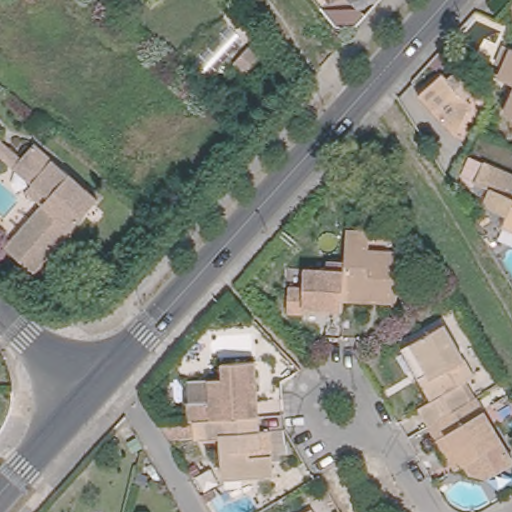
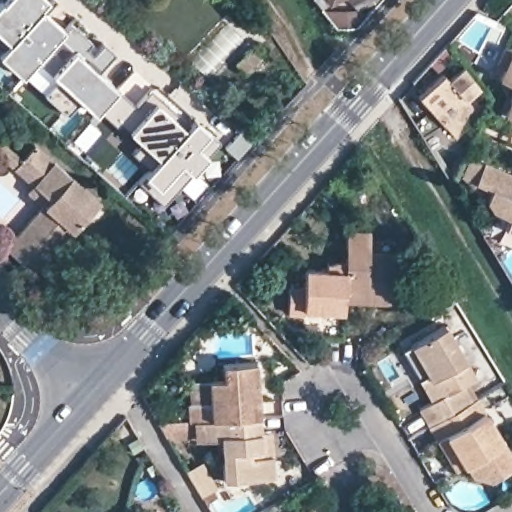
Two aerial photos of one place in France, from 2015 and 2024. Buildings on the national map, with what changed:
new [(2,1),(3,0),(46,0),(41,6),(62,26),(70,19),(92,39),(87,44),(93,50),(103,40),(113,49),(95,65),(116,86),(137,104),(152,87),(187,120),(179,125),(183,128),(158,155),(155,151),(149,165),(132,146),(138,135),(133,129),(124,121),(118,126),(99,107),(95,111),(75,94),(65,111),(40,90),(52,70),(40,58),(23,75),(0,54),(0,52),(10,41),(0,32),(0,0),(2,1)]
unchanged [(504,65),(497,62),(505,46),(512,49),(512,82),(500,76),(504,65)]
unchanged [(445,120),(418,91),(443,69),(448,75),(464,60),(479,80),(465,92),(470,99),(461,120),(455,132),(452,127),(445,120)]
unchanged [(512,96),(512,115),(506,112),(512,96)]
new [(184,129),(193,118),(207,129),(218,139),(204,152),(207,155),(194,169),(205,180),(191,195),(179,184),(163,203),(138,179),(143,172),(149,165),(155,151),(158,155),(159,154),(183,128),(184,129)]
unchanged [(99,206),(36,278),(2,247),(40,206),(25,191),(32,184),(12,166),(0,156),(0,142),(18,159),(31,145),(99,206)]
unchanged [(511,240),(493,231),(498,219),(481,211),(478,204),(483,194),(469,186),(479,166),(512,180),(512,249),(507,246),(511,240)]
unchanged [(344,296),(347,256),(349,225),(370,226),(369,234),(394,235),(393,247),(400,246),(398,298),(379,297),(360,296),(344,296)]
unchanged [(344,305),(306,302),(306,306),(289,306),(291,281),(305,282),(306,262),(330,263),(329,255),(347,256),(344,296),(344,305)]
unchanged [(479,369),(468,376),(477,391),(433,417),(423,400),(445,387),(433,367),(425,372),(406,341),(414,337),(448,317),(479,369)]
unchanged [(197,420),(188,420),(187,402),(210,401),(209,379),(223,378),(222,363),(255,361),(256,376),(257,385),(259,416),(197,420)]
unchanged [(458,461),(441,431),(433,417),(477,391),(482,388),(512,440),(512,459),(494,470),(472,466),(467,455),(458,461)]
unchanged [(262,457),(272,456),(273,480),(223,482),(220,435),(198,437),(197,420),(259,416),(260,435),(262,457)]

